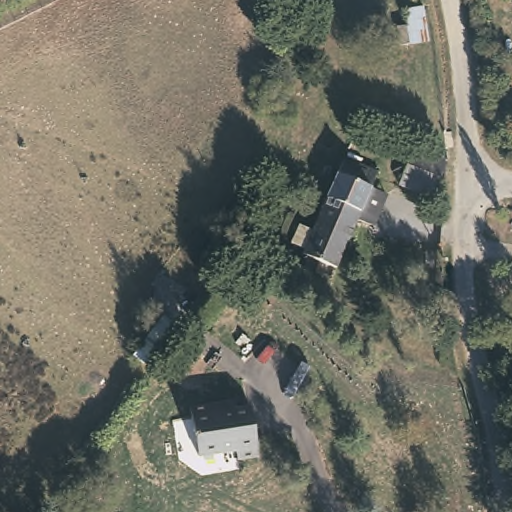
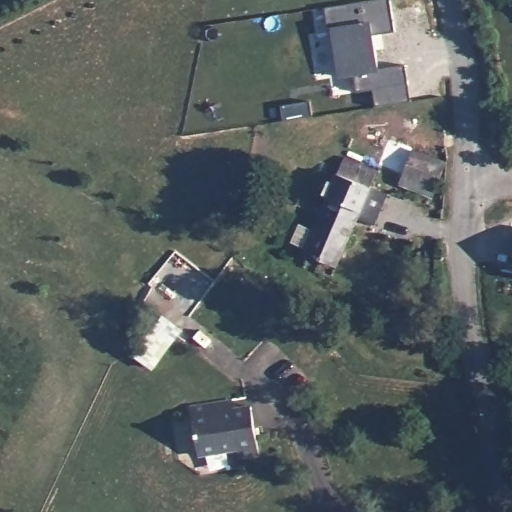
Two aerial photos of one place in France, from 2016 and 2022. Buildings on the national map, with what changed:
new [(376,90),(357,93),(355,76),(338,78),(330,31),(327,31),(323,7),(373,0),(391,0),(395,32),(374,35),(380,69),(407,66),(416,102),(379,107),(376,90)]
demolished [(427,42),(398,45),(397,27),(408,25),(407,9),(424,7),(427,42)]
unchanged [(445,163),(432,196),(400,181),(414,149),(445,163)]
unchanged [(376,170),(336,266),(302,252),(343,156),(376,170)]
unchanged [(231,414),(248,412),(255,460),(233,464),(231,456),(195,460),(187,412),(230,406),(231,414)]

